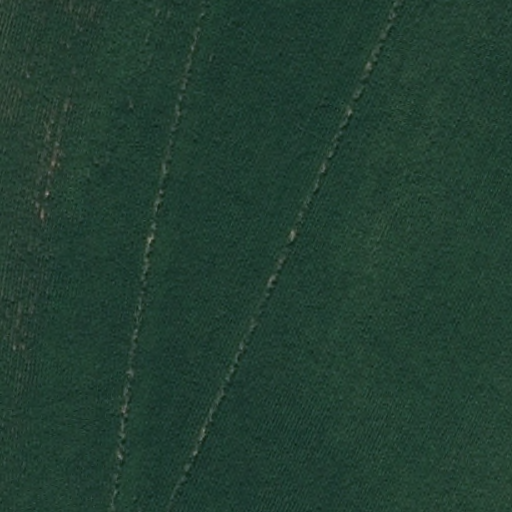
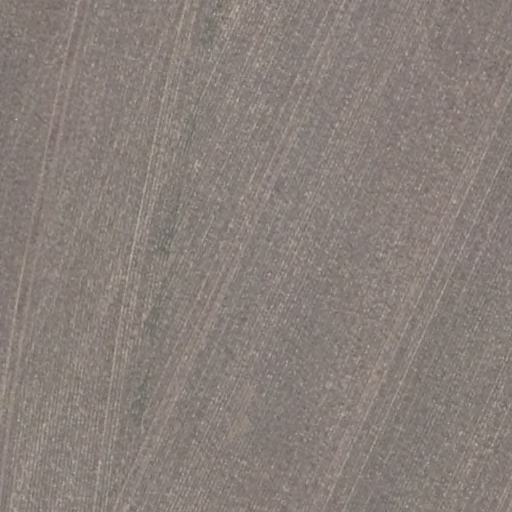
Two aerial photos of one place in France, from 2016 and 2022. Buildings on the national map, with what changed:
[]

